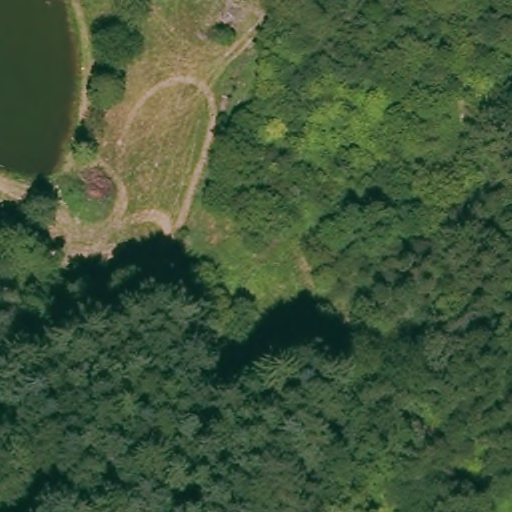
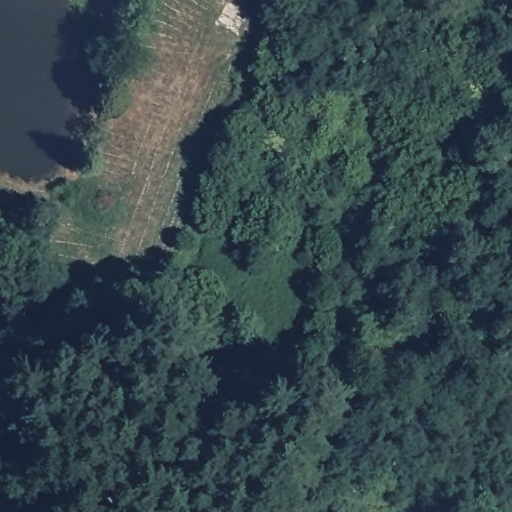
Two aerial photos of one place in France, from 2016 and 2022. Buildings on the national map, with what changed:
unchanged [(447,103),(460,97),(469,122),(455,128),(447,103)]
unchanged [(178,298),(190,305),(180,327),(167,321),(178,298)]

